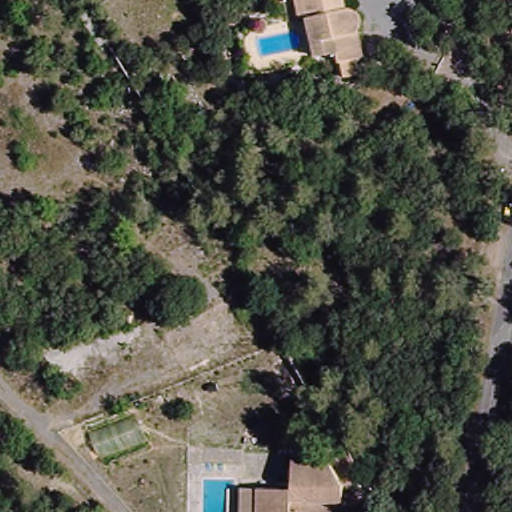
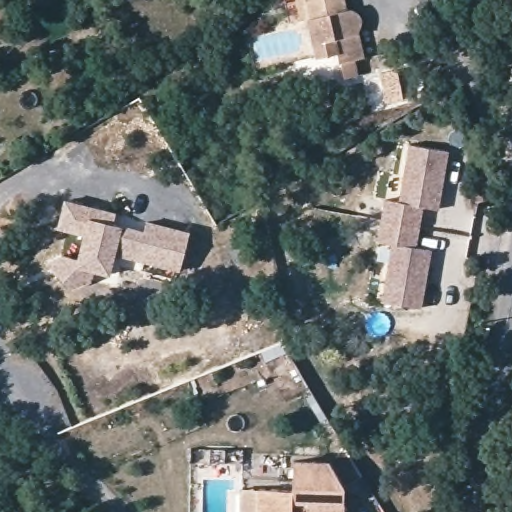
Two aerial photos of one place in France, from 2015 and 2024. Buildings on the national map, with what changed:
unchanged [(344,4),(350,3),(356,6),(360,10),(362,15),(361,19),(358,23),(359,30),(364,53),(354,55),(356,67),(344,69),(342,57),(338,57),(336,48),(315,53),(305,0),(343,0),(344,4)]
new [(386,197),(401,200),(412,142),(450,149),(439,207),(423,204),(419,225),(382,218),(386,197)]
new [(180,271),(114,255),(110,275),(94,270),(91,281),(74,290),(46,263),(61,255),(77,259),(82,236),(56,229),(63,200),(114,212),(112,224),(121,226),(144,231),(146,220),(190,232),(180,271)]
new [(382,218),(419,225),(415,245),(431,248),(420,306),(382,299),(393,241),(378,238),(382,218)]
unchanged [(250,484),(285,485),(286,456),(323,457),(344,444),(360,471),(339,483),(339,512),(239,512),(239,484),(250,484)]

